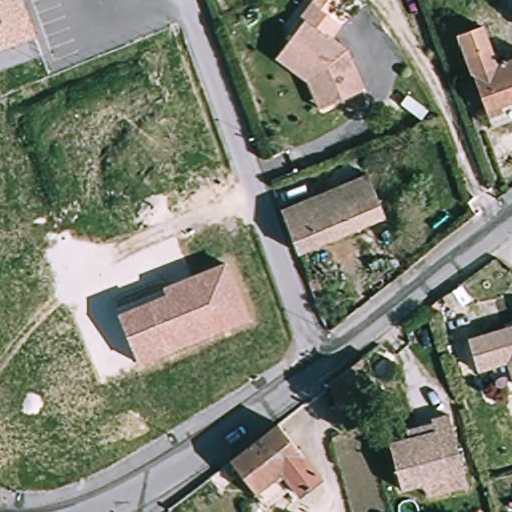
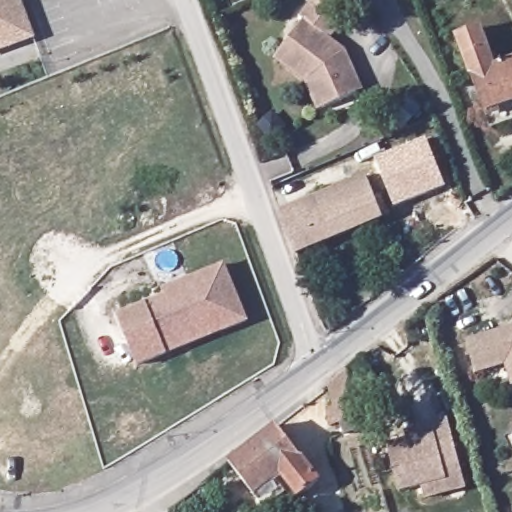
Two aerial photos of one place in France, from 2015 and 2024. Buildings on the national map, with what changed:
unchanged [(27,0),(29,4),(0,15),(0,0),(27,0)]
unchanged [(298,20),(293,17),(300,2),(335,21),(327,36),(337,41),(333,46),(346,63),(353,61),(366,94),(328,108),(320,110),(309,81),(275,64),(282,50),(298,20)]
unchanged [(29,4),(41,34),(0,52),(0,15),(29,4)]
unchanged [(460,30),(482,22),(499,70),(512,65),(512,106),(491,114),(460,30)]
new [(445,188),(395,210),(375,160),(427,139),(445,188)]
unchanged [(282,206),(368,174),(385,217),(297,250),(282,206)]
unchanged [(137,366),(118,317),(165,298),(162,291),(181,283),(223,267),(246,322),(224,331),(167,355),(137,366)]
unchanged [(326,329),(321,314),(334,306),(339,319),(326,329)]
unchanged [(506,327),(506,332),(512,330),(512,373),(508,361),(479,371),(469,340),(506,327)]
unchanged [(340,416),(336,403),(341,398),(336,382),(355,370),(371,359),(384,407),(366,410),(340,416)]
unchanged [(425,495),(423,483),(400,487),(390,442),(410,438),(408,431),(434,426),(432,420),(450,416),(462,475),(465,488),(425,495)]
unchanged [(285,469),(257,489),(241,470),(247,458),(246,452),(285,424),(322,470),(300,487),(285,469)]

